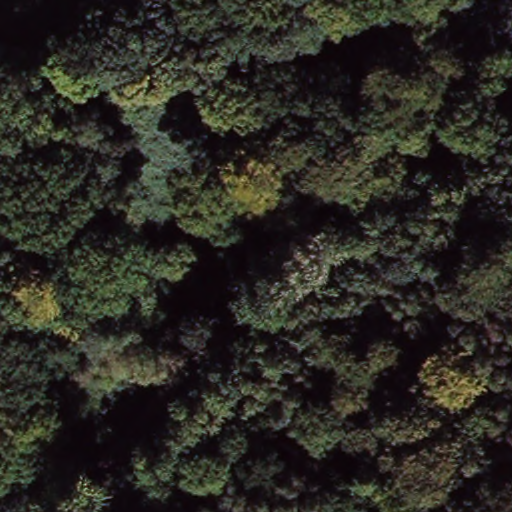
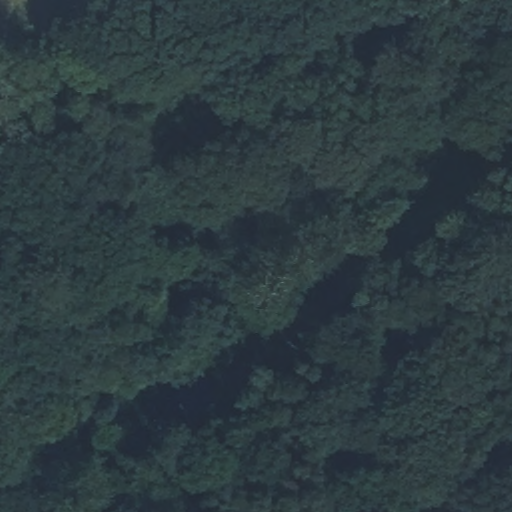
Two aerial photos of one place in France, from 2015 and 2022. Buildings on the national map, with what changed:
[]

